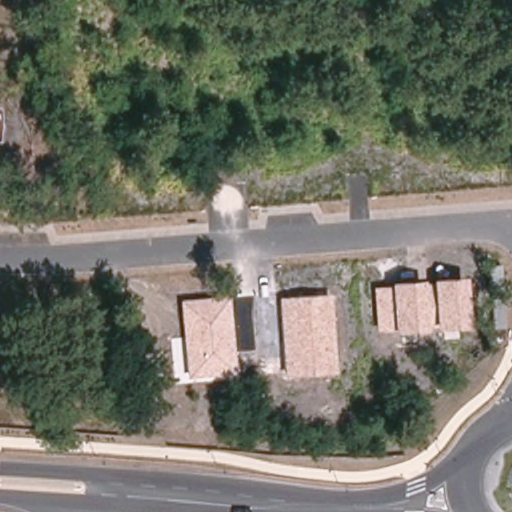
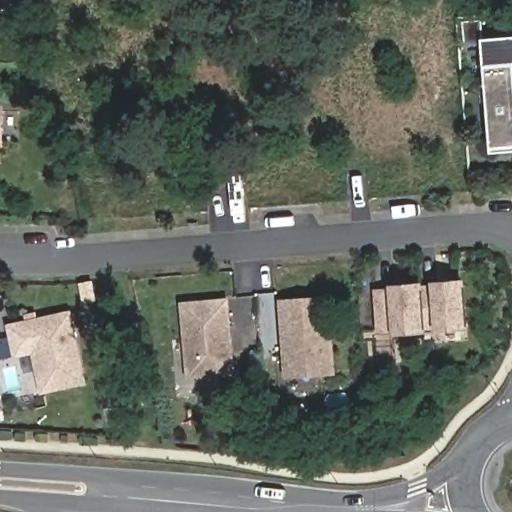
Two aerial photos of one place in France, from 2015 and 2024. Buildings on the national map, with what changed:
new [(493,64),(491,39),(512,37),(512,146),(494,147),(487,65),(493,64)]
unchanged [(0,142),(0,107),(1,107),(0,142)]
unchanged [(426,330),(393,332),(376,332),(373,286),(389,284),(423,281),(431,281),(466,278),(469,328),(434,330),(426,330)]
unchanged [(336,373),(284,376),(279,299),(330,294),(336,373)]
unchanged [(236,373),(187,378),(181,300),(230,295),(236,373)]
new [(42,394),(32,353),(15,357),(8,324),(72,309),(88,384),(42,394)]

